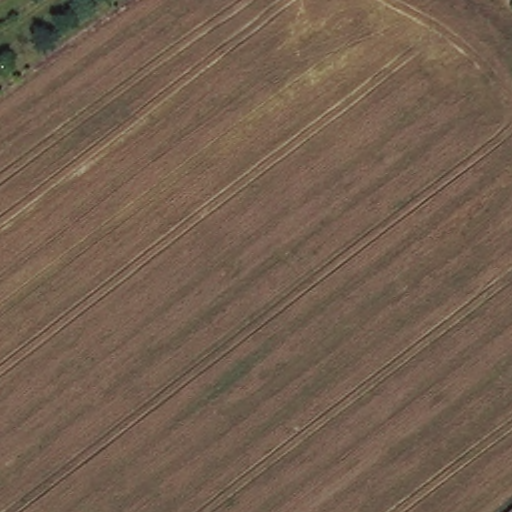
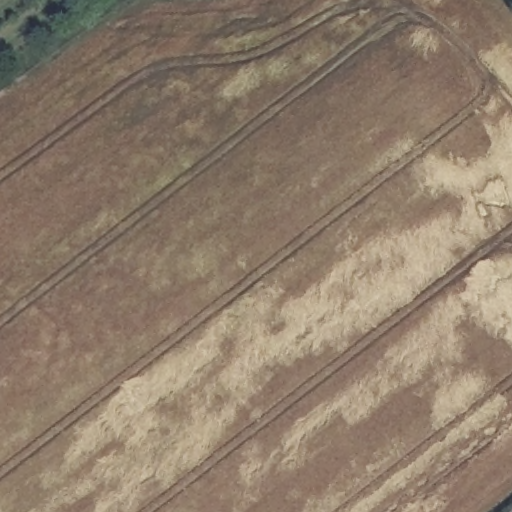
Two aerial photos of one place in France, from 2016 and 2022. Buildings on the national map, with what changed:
unchanged [(2,0),(0,1),(0,0),(2,0)]

